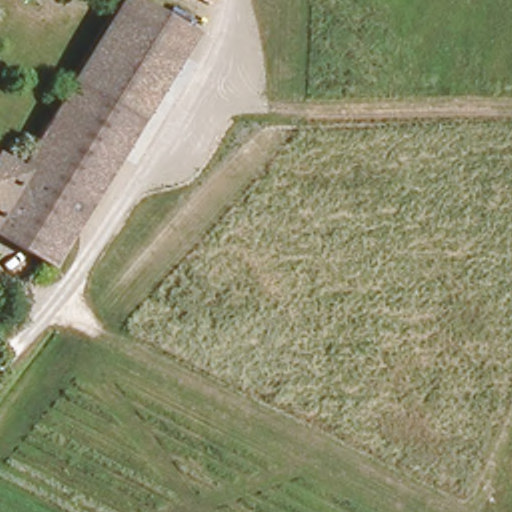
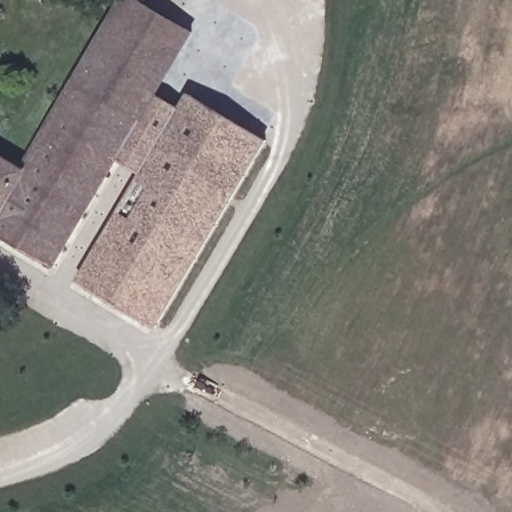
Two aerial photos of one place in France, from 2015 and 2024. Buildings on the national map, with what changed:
unchanged [(6,156),(12,159),(26,166),(74,81),(120,0),(130,0),(174,26),(181,31),(157,79),(139,114),(87,215),(52,270),(0,242),(0,153),(6,156)]
new [(179,108),(189,93),(268,140),(158,329),(77,282),(140,174),(116,160),(139,114),(151,90),(179,108)]

